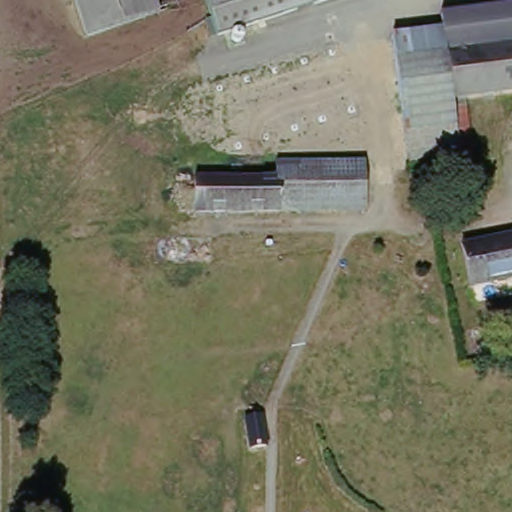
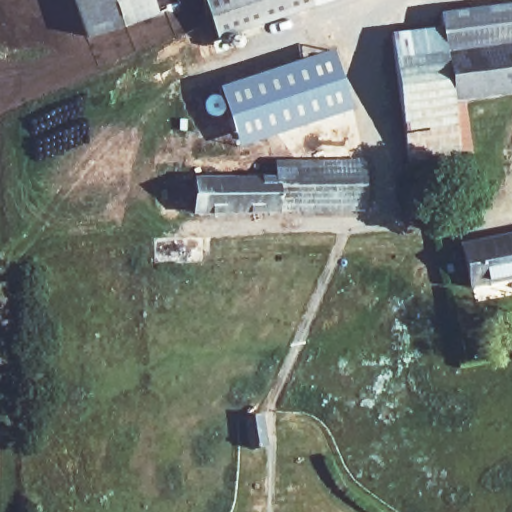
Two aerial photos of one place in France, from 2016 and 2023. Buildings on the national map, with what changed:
unchanged [(160,11),(89,36),(76,0),(157,0),(159,7),(160,11)]
unchanged [(206,0),(316,0),(317,3),(219,38),(213,41),(207,24),(213,21),(206,0)]
unchanged [(326,0),(317,3),(316,0),(326,0)]
unchanged [(454,101),(460,156),(410,161),(394,34),(440,29),(440,17),(512,8),(512,94),(454,101)]
new [(333,56),(353,120),(238,155),(221,97),(333,56)]
unchanged [(183,184),(232,183),(283,182),(283,171),(371,170),(372,212),(182,212),(183,184)]
unchanged [(471,289),(463,243),(512,232),(512,280),(471,289)]
unchanged [(249,415),(265,413),(267,431),(270,447),(252,447),(250,431),(249,415)]

